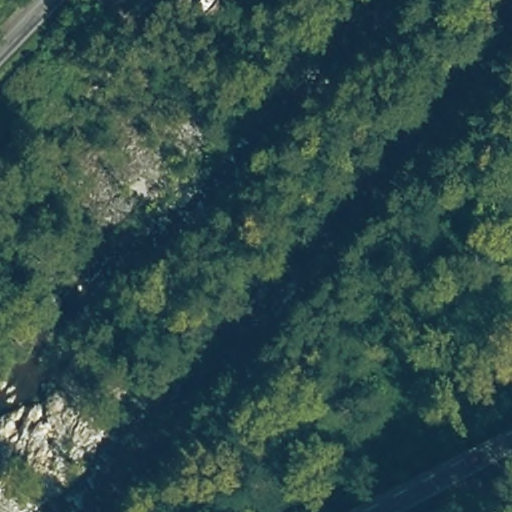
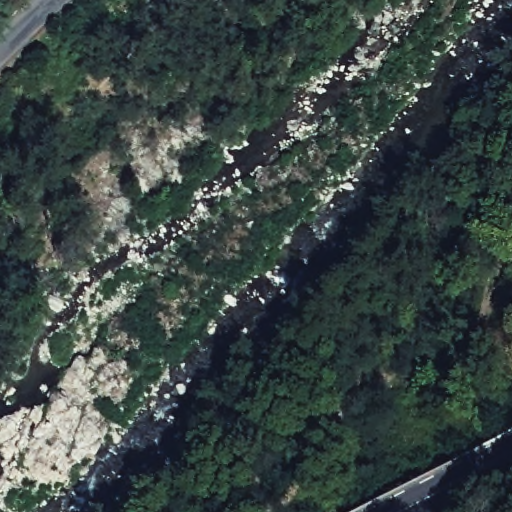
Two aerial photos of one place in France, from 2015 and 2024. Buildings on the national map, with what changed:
[]

